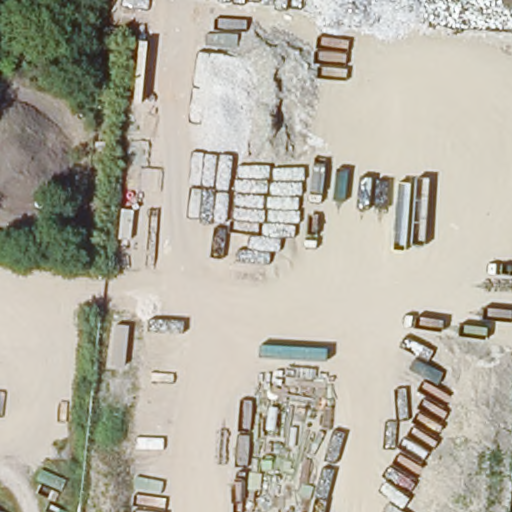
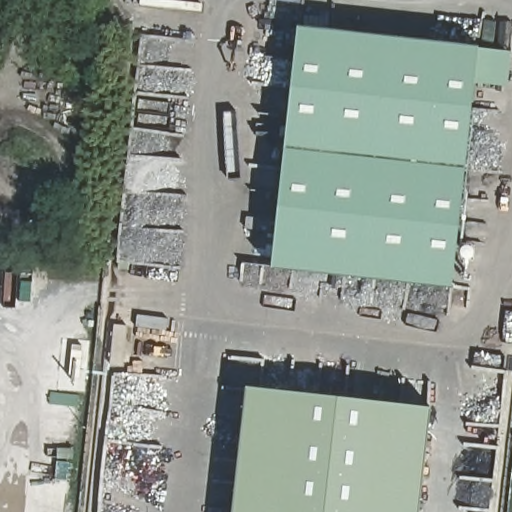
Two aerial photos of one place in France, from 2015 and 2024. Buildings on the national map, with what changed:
new [(300,27),(481,47),(454,287),(274,268),(300,27)]
new [(419,512),(238,512),(251,396),(430,416),(419,512)]
demolished [(2,512),(0,512),(0,511),(2,512)]

